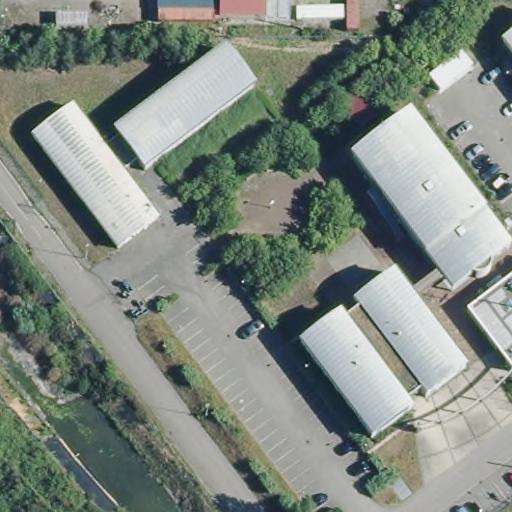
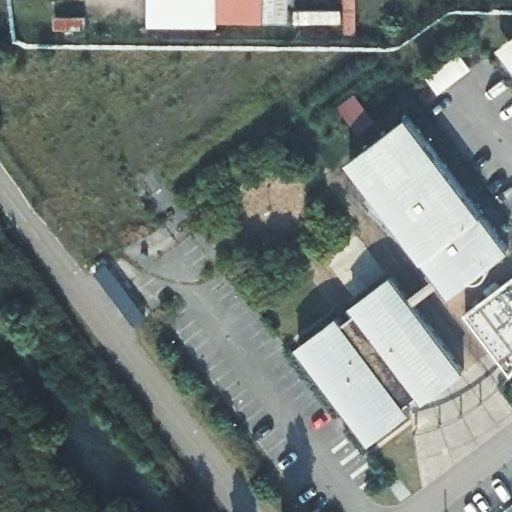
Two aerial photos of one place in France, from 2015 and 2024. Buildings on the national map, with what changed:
new [(289,22),(218,21),(218,27),(148,26),(149,0),(289,0),(289,22)]
unchanged [(499,46),(512,35),(512,64),(499,46)]
demolished [(223,49),(255,90),(143,177),(130,164),(122,175),(160,220),(115,252),(27,138),(71,106),(102,150),(111,136),(223,49)]
unchanged [(369,445),(345,412),(294,346),(336,313),(343,320),(356,310),(351,306),(392,273),(409,293),(434,275),(346,162),(408,115),(511,250),(449,295),(441,285),(416,303),(463,371),(425,403),(418,395),(407,404),(413,410),(409,413),(369,445)]
unchanged [(512,276),(512,372),(467,313),(512,276)]

